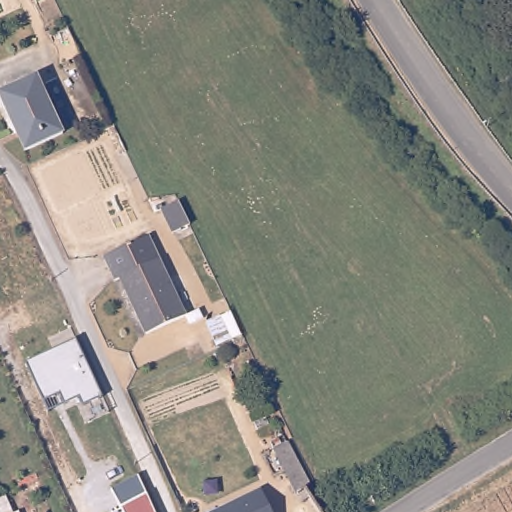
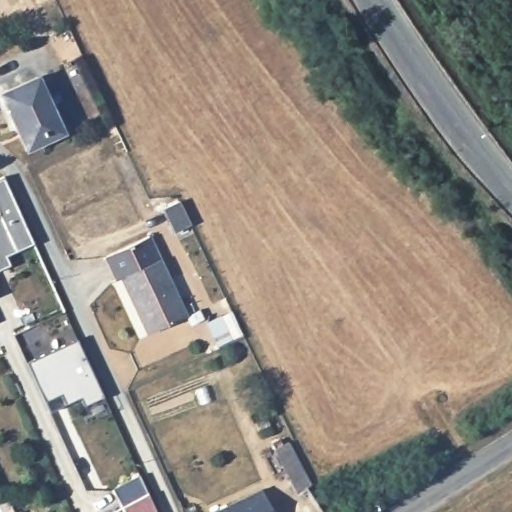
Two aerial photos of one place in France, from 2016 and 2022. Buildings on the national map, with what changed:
unchanged [(37,77),(62,132),(25,149),(0,94),(37,77)]
new [(0,213),(0,178),(4,176),(34,242),(6,255),(10,264),(0,269),(0,214),(0,213)]
unchanged [(177,202),(189,225),(174,232),(162,209),(177,202)]
unchanged [(148,239),(185,316),(147,335),(121,279),(116,281),(106,258),(148,239)]
unchanged [(101,397),(84,405),(80,398),(50,412),(27,361),(75,340),(101,397)]
unchanged [(279,441),(282,445),(287,443),(309,484),(295,491),(271,445),(279,441)]
unchanged [(124,508),(114,491),(139,475),(146,493),(155,512),(126,512),(124,508)]
unchanged [(265,492),(275,512),(224,512),(265,492)]
unchanged [(0,498),(5,496),(12,512),(0,512),(0,498)]

